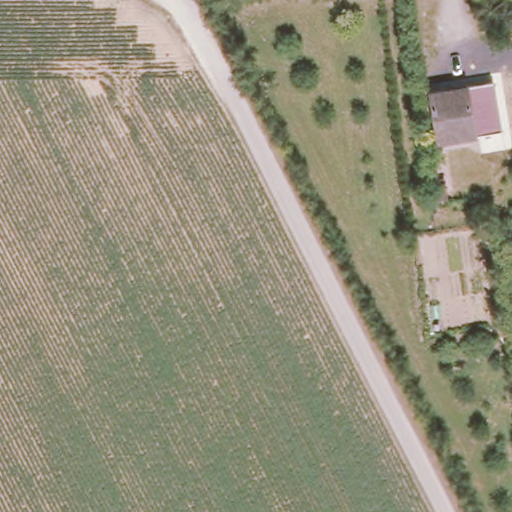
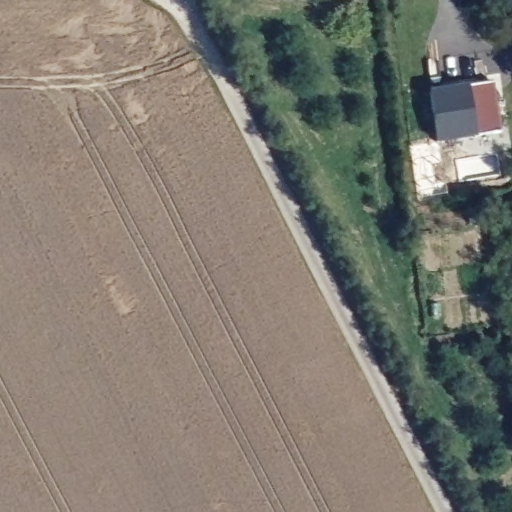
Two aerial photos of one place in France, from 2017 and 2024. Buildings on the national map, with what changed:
unchanged [(467,84),(476,132),(438,140),(430,90),(467,84)]
unchanged [(493,153),(482,154),(482,137),(491,137),(493,153)]
unchanged [(442,176),(444,197),(429,199),(426,179),(442,176)]

